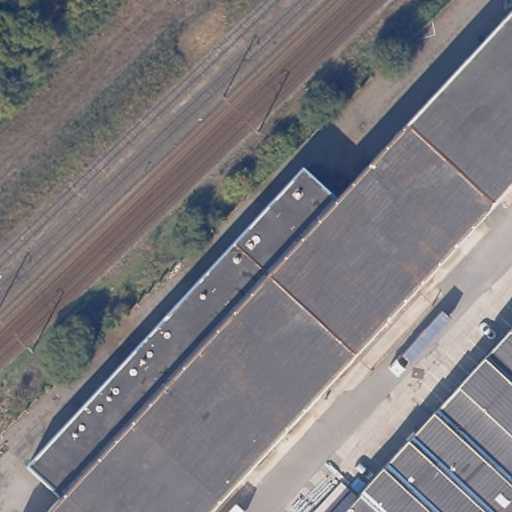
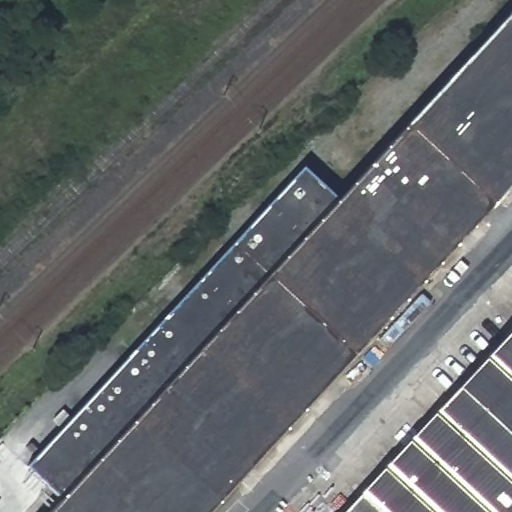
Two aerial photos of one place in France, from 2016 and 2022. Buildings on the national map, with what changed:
unchanged [(211,512),(55,512),(70,496),(18,447),(54,408),(70,423),(308,165),(342,196),(512,13),(512,187),(211,512)]
unchanged [(340,512),(512,327),(512,512),(340,512)]

